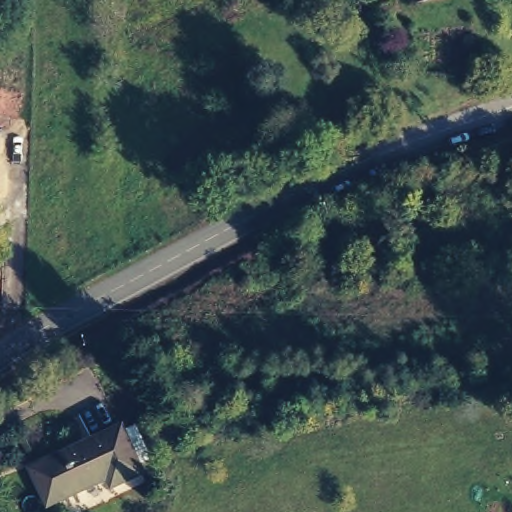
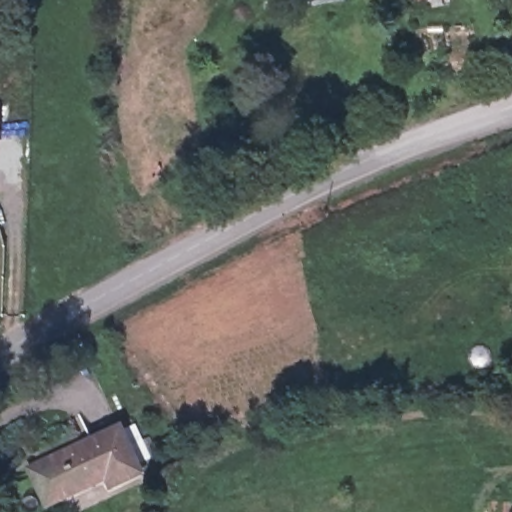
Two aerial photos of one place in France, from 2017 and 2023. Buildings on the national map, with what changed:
unchanged [(114,421),(135,467),(105,480),(101,471),(54,490),(39,454),(114,421)]

